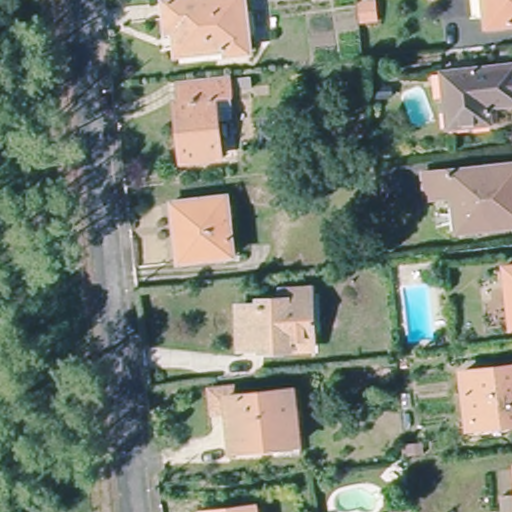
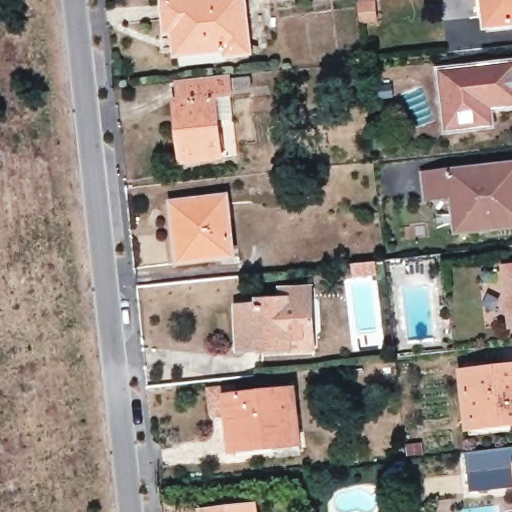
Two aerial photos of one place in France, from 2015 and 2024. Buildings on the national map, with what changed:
unchanged [(162,7),(224,0),(243,0),(247,60),(228,62),(227,57),(176,60),(174,42),(166,43),(164,24),(162,7)]
unchanged [(478,0),(512,0),(512,20),(480,24),(478,0)]
unchanged [(440,87),(431,88),(430,77),(512,67),(512,105),(492,107),(493,127),(474,130),(445,133),(444,119),(440,87)]
unchanged [(230,100),(212,101),(214,157),(178,160),(173,106),(176,106),(175,80),(227,74),(230,100)]
unchanged [(512,220),(454,226),(451,192),(425,195),(423,173),(512,163),(512,220)]
unchanged [(233,244),(234,255),(176,262),(170,201),(228,196),(233,244)]
unchanged [(505,274),(512,273),(512,331),(510,331),(505,274)]
unchanged [(278,352),(249,353),(249,347),(233,348),(233,308),(250,307),(251,302),(274,301),(274,289),(305,287),(305,300),(307,337),(307,350),(278,352)]
unchanged [(470,425),(459,426),(459,416),(468,415),(464,364),(512,360),(512,429),(471,432),(470,425)]
unchanged [(296,392),(301,440),(231,445),(227,400),(296,392)]
new [(512,486),(472,492),(468,451),(512,445),(512,486)]
unchanged [(253,510),(253,512),(223,512),(253,510)]

